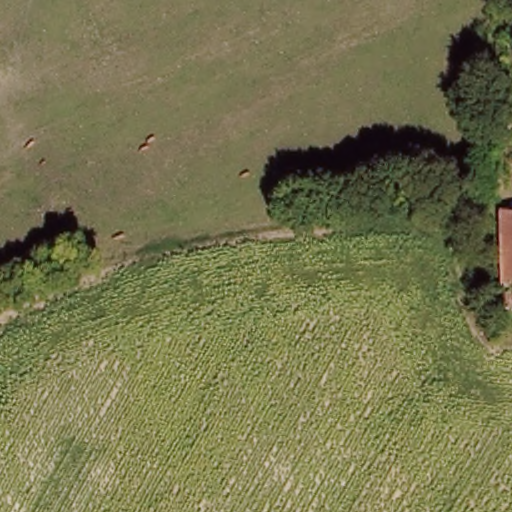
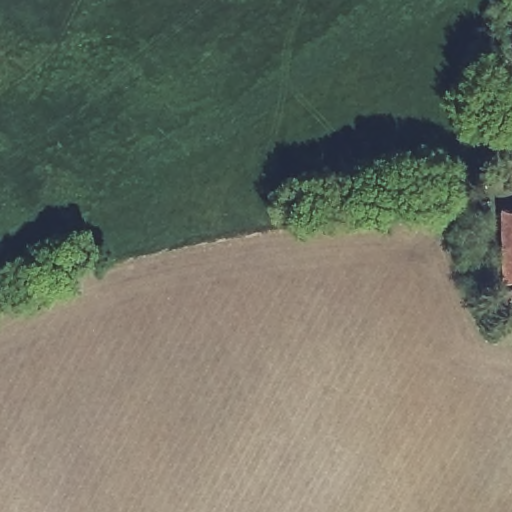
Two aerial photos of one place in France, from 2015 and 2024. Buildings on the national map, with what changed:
unchanged [(504,207),(512,208),(512,305),(508,304),(505,222),(504,207)]

